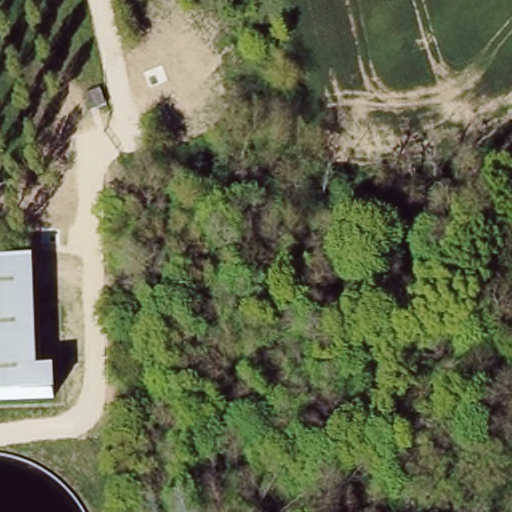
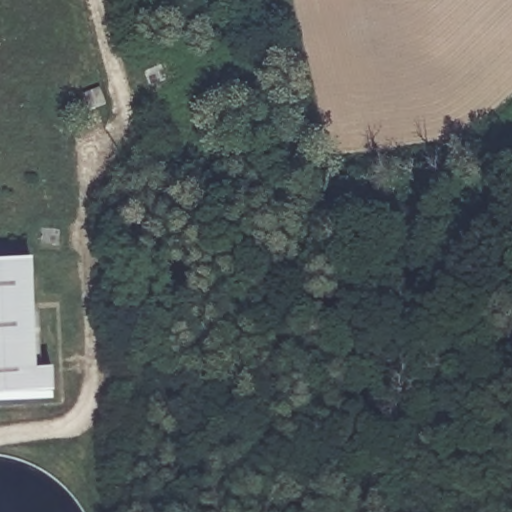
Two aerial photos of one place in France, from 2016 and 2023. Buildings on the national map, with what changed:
unchanged [(31,265),(37,375),(53,373),(53,397),(0,399),(0,266),(31,265)]

